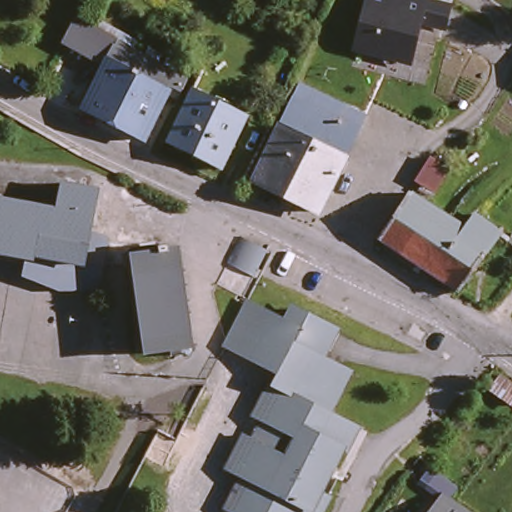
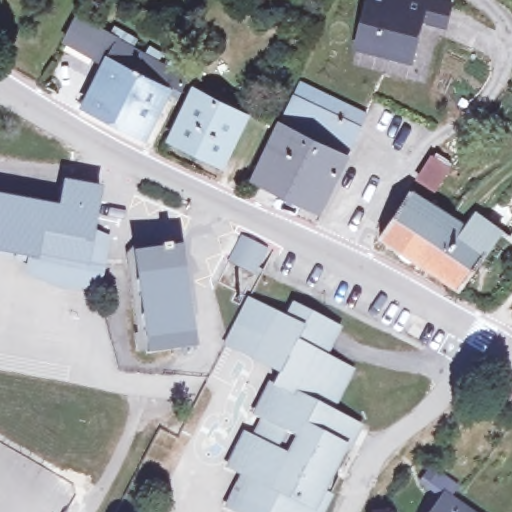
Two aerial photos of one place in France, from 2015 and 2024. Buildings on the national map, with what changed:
unchanged [(355,42),(365,0),(427,0),(433,1),(419,57),(355,42)]
unchanged [(171,89),(146,136),(85,104),(108,61),(70,39),(83,16),(191,76),(181,94),(171,89)]
unchanged [(304,80),(369,112),(362,125),(296,96),(304,80)]
unchanged [(226,102),(248,113),(223,164),(170,137),(196,86),(206,92),(226,102)]
unchanged [(362,125),(321,208),(258,177),(296,96),(362,125)]
unchanged [(441,188),(418,176),(423,166),(435,149),(456,162),(441,188)]
unchanged [(71,181),(106,188),(98,241),(185,245),(198,342),(153,348),(143,265),(105,261),(0,243),(0,195),(66,206),(71,181)]
unchanged [(412,189),(467,224),(478,211),(512,234),(512,233),(512,240),(502,233),(461,287),(381,235),(412,189)]
unchanged [(266,250),(251,276),(226,263),(239,236),(266,250)]
unchanged [(101,294),(81,293),(59,291),(39,286),(24,280),(27,267),(0,262),(0,243),(105,261),(101,294)]
unchanged [(233,501),(248,472),(231,463),(250,429),(258,433),(267,415),(260,412),(278,379),(225,350),(230,341),(253,297),(290,316),(298,302),(340,325),(326,352),(354,367),(333,409),(359,423),(326,486),(335,490),(325,509),(323,512),(254,512),(233,501)]
unchanged [(512,383),(512,404),(511,406),(483,380),(495,367),(512,383)]
unchanged [(447,492),(477,512),(431,512),(447,492)]

